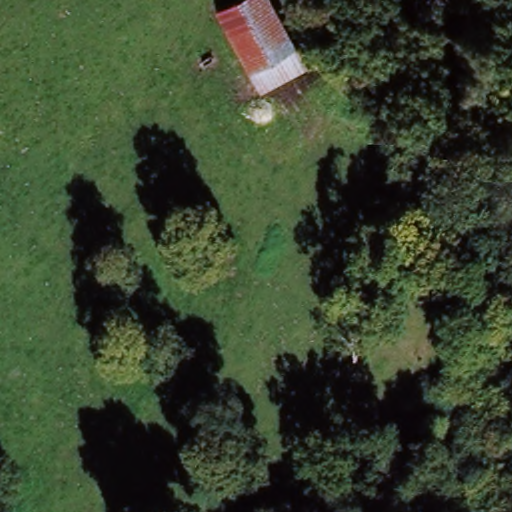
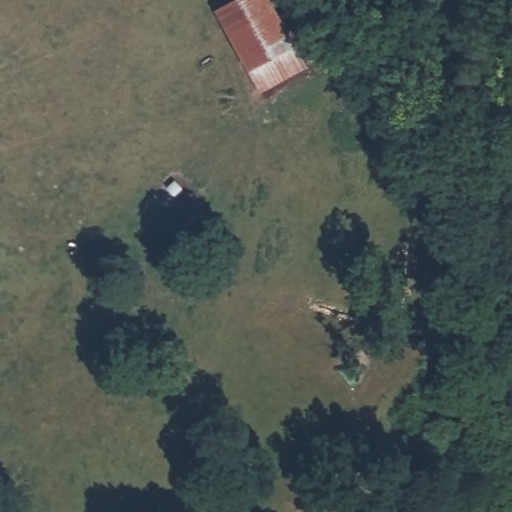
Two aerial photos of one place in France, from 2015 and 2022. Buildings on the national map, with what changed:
unchanged [(215,21),(247,0),(272,0),(307,74),(262,101),(215,21)]

